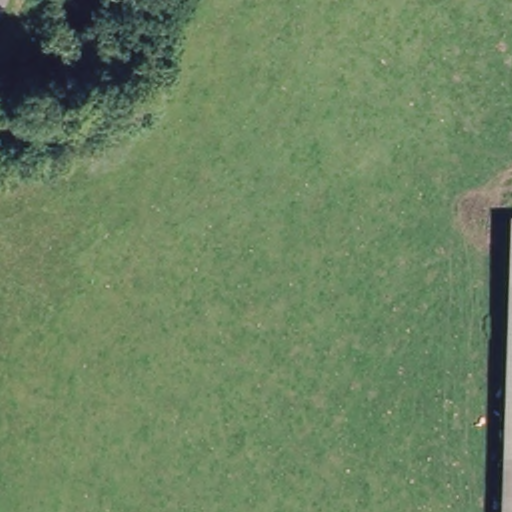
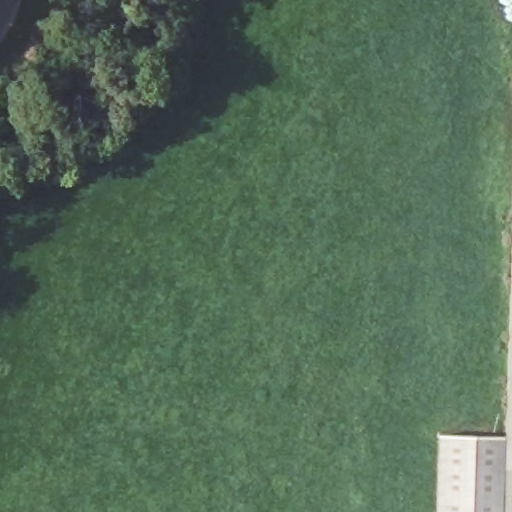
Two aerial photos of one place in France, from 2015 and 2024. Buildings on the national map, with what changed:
new [(504,435),(512,182),(512,512),(434,512),(436,431),(504,435)]
demolished [(509,318),(512,227),(512,318),(509,318)]
demolished [(509,318),(512,318),(512,410),(508,410),(509,318)]
demolished [(502,512),(508,410),(512,410),(512,512),(502,512)]

